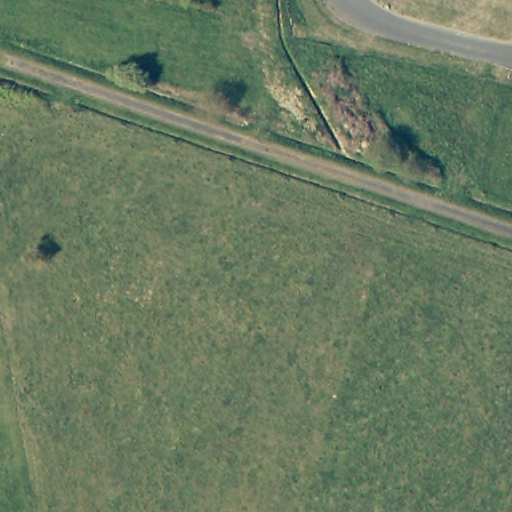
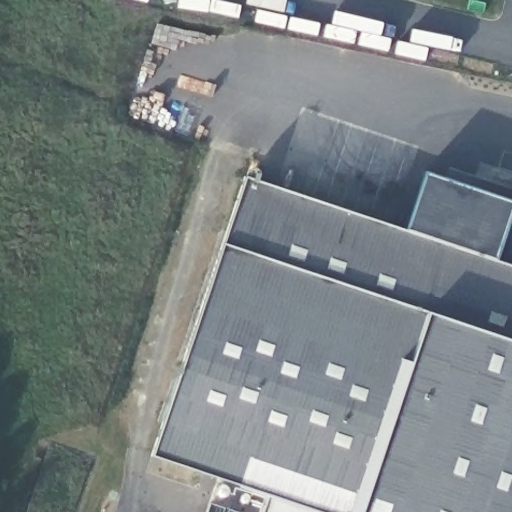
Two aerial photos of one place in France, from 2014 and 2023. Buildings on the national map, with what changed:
new [(151,455),(224,243),(248,178),(403,229),(425,172),(512,203),(512,512),(262,512),(267,496),(151,455)]
new [(229,512),(206,512),(209,505),(229,512)]

